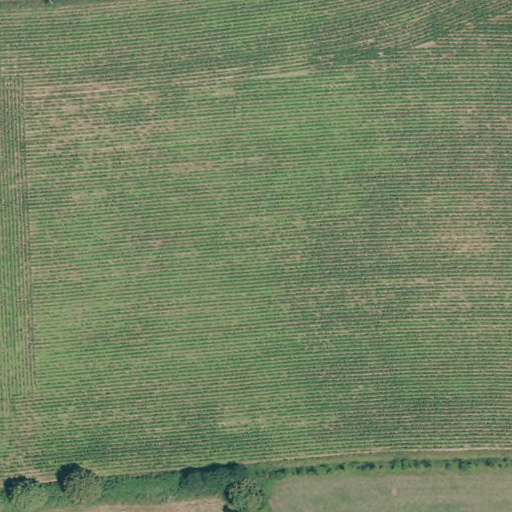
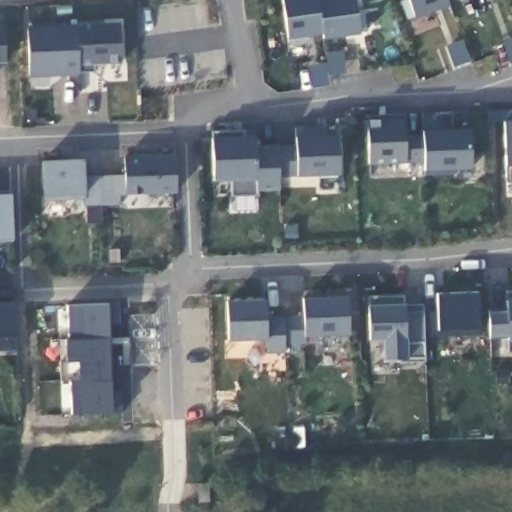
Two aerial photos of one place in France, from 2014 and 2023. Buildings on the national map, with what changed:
new [(305,31),(305,36),(285,39),(279,0),(315,0),(319,29),(305,31)]
new [(315,0),(352,0),(353,7),(360,6),(363,28),(320,34),(319,29),(315,0)]
new [(404,15),(399,0),(444,0),(404,15)]
new [(122,59),(95,60),(96,69),(80,69),(78,21),(120,20),(122,59)]
new [(0,59),(0,24),(2,24),(4,59),(0,59)]
new [(76,27),(78,75),(31,77),(28,28),(76,27)]
new [(421,158),(420,131),(421,126),(420,109),(436,108),(437,126),(436,130),(471,128),(472,169),(420,171),(421,158)]
new [(361,116),(382,115),(382,110),(401,110),(402,131),(420,131),(421,158),(366,160),(365,138),(362,138),(361,116)]
new [(382,115),(364,116),(364,111),(382,110),(382,115)]
new [(295,124),(326,123),(326,132),(337,131),(338,170),(279,173),(277,142),(295,141),(295,124)]
new [(256,131),(256,147),(277,147),(278,189),(256,190),(256,197),(232,197),(231,180),(212,181),(211,132),(256,131)]
new [(116,191),(117,200),(99,201),(98,173),(122,172),(121,154),(172,152),(174,188),(116,191)]
new [(40,158),(81,156),(81,173),(98,173),(99,200),(81,201),(81,194),(41,196),(40,158)]
new [(9,188),(11,238),(0,238),(0,188),(9,188)]
new [(84,203),(99,202),(99,214),(100,220),(85,220),(85,215),(84,203)]
new [(478,330),(423,332),(422,307),(436,306),(436,289),(477,287),(478,330)]
new [(302,332),(303,339),(282,340),(281,313),(301,312),(300,295),(345,293),(347,330),(302,332)]
new [(403,295),(404,305),(422,304),(424,362),(397,363),(397,358),(385,358),(383,339),(369,339),(367,307),(367,297),(403,295)]
new [(503,304),(503,296),(512,295),(512,347),(506,348),(505,334),(487,334),(486,305),(503,304)]
new [(0,346),(0,299),(13,299),(14,346),(0,346)]
new [(119,388),(120,409),(68,410),(67,376),(58,376),(57,357),(63,357),(62,335),(65,335),(64,301),(116,299),(117,320),(107,320),(109,388),(119,388)]
new [(267,313),(281,313),(282,340),(227,341),(226,300),(265,299),(267,313)]

